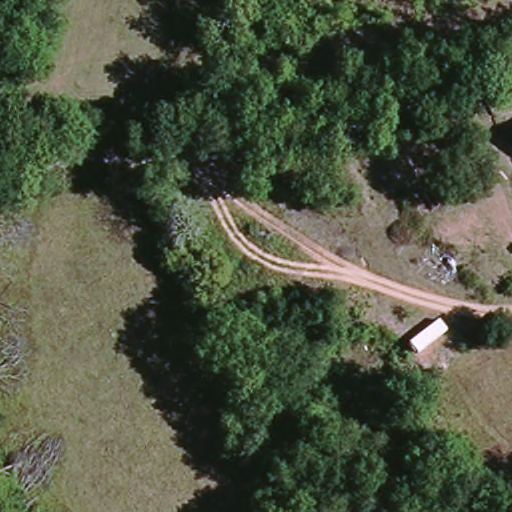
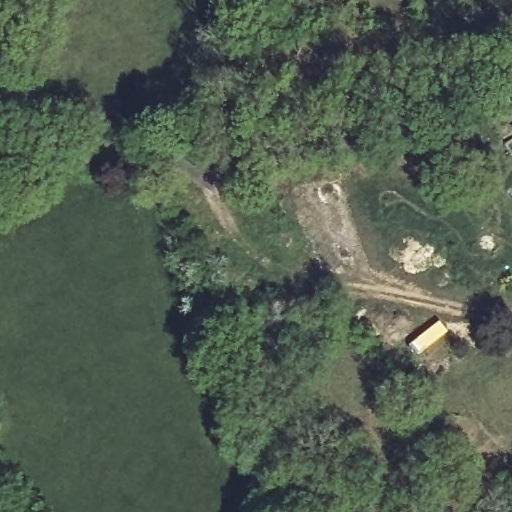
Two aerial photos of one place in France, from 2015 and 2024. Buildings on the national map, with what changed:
unchanged [(445,142),(448,151),(453,149),(462,172),(443,179),(432,147),(445,142)]

